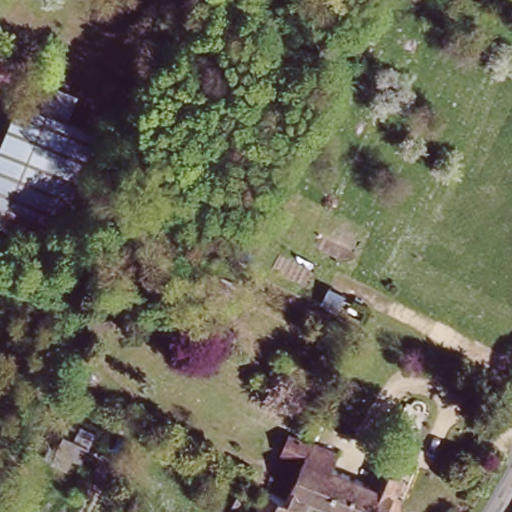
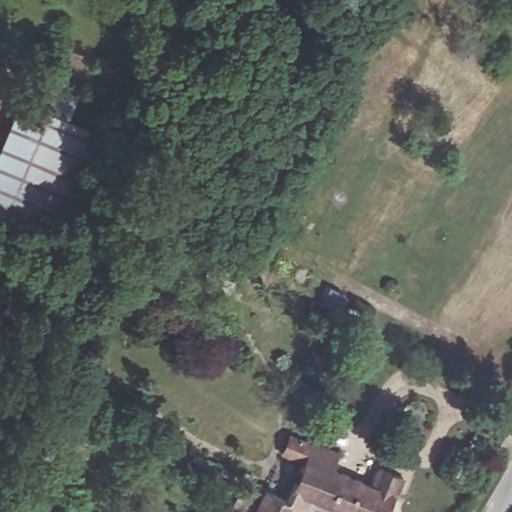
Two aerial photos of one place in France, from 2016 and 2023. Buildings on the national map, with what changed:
unchanged [(0,207),(0,139),(18,99),(29,75),(77,99),(68,122),(100,139),(59,236),(0,207)]
unchanged [(78,443),(71,458),(47,447),(54,433),(78,443)]
unchanged [(301,494),(297,502),(291,499),(285,512),(251,512),(264,485),(286,496),(305,456),(311,441),(335,453),(329,467),(341,471),(327,506),(301,494)]
unchanged [(379,468),(403,479),(387,512),(342,512),(327,506),(341,471),(371,485),(379,468)]
unchanged [(245,512),(231,512),(230,512),(238,494),(251,500),(245,512)]

